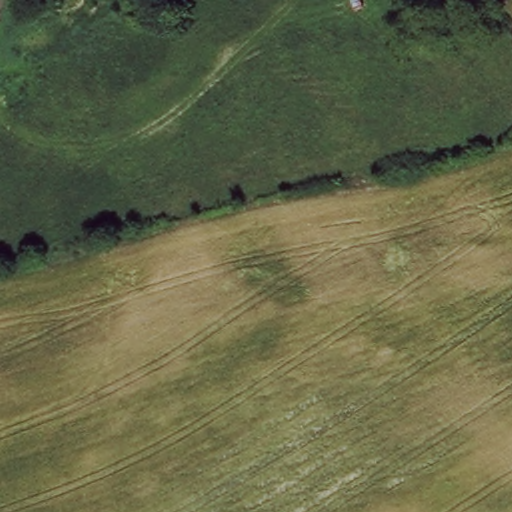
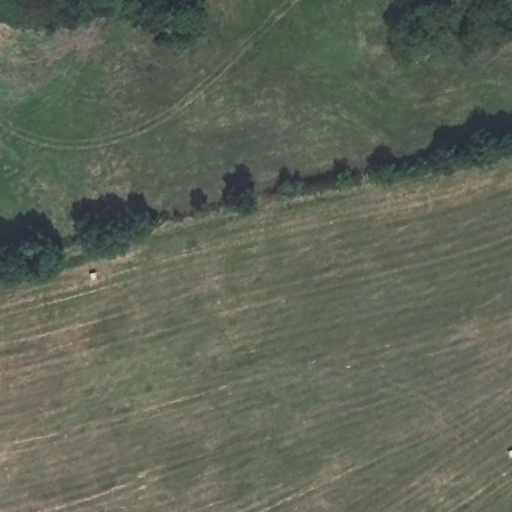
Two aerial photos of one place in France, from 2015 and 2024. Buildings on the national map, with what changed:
unchanged [(375,0),(380,0),(376,2),(375,0)]

